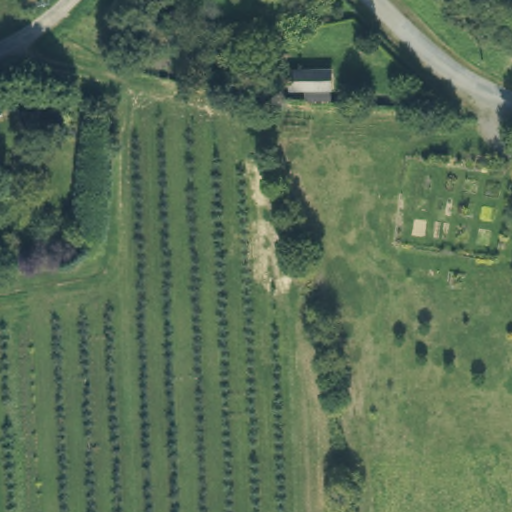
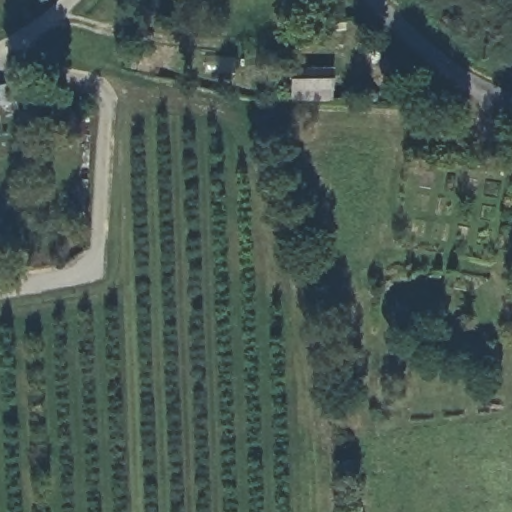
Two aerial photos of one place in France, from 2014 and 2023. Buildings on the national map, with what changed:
unchanged [(330,70),(330,89),(290,89),(291,69),(330,70)]

